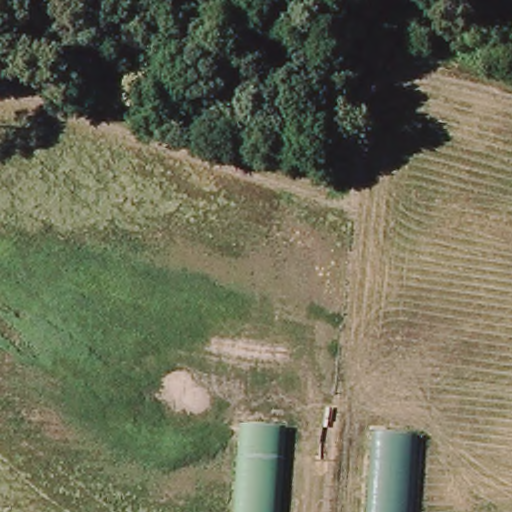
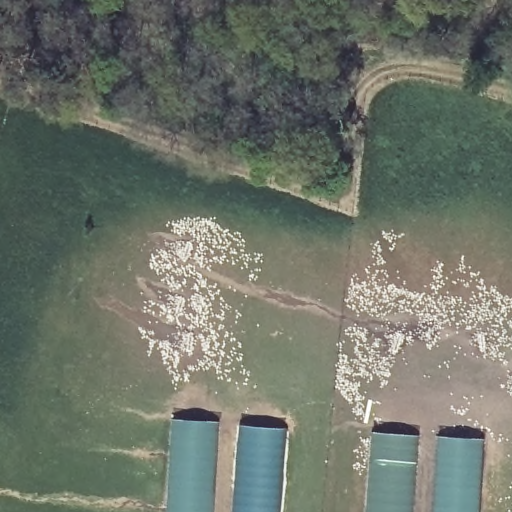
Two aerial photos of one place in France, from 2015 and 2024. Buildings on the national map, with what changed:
new [(173,419),(215,424),(210,512),(167,512),(173,419)]
unchanged [(244,424),(287,428),(281,512),(238,512),(244,424)]
unchanged [(377,430),(420,434),(417,512),(372,512),(377,430)]
new [(442,438),(487,441),(482,512),(438,512),(442,438)]

